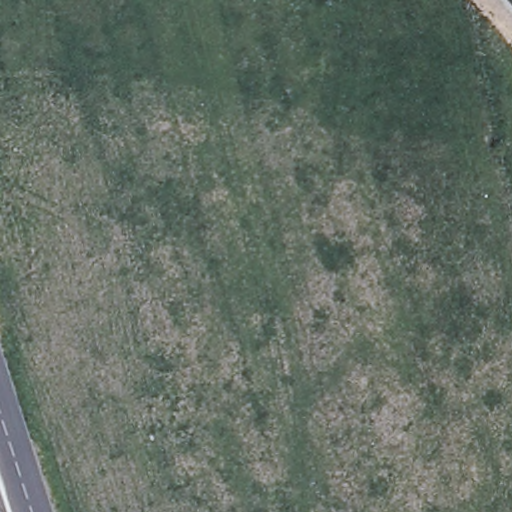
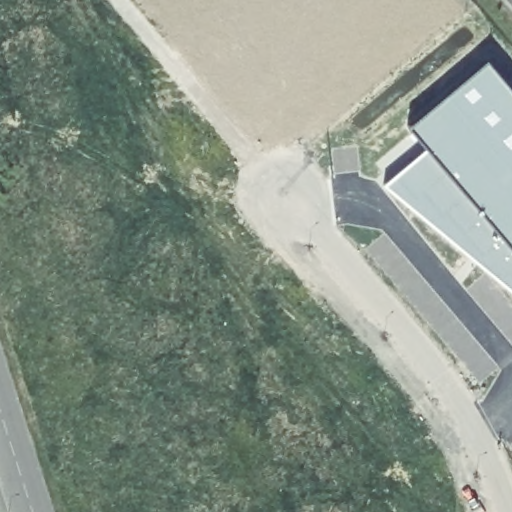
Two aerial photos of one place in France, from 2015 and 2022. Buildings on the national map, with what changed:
new [(383,185),(430,149),(413,130),(489,62),(512,89),(512,292),(383,185)]

